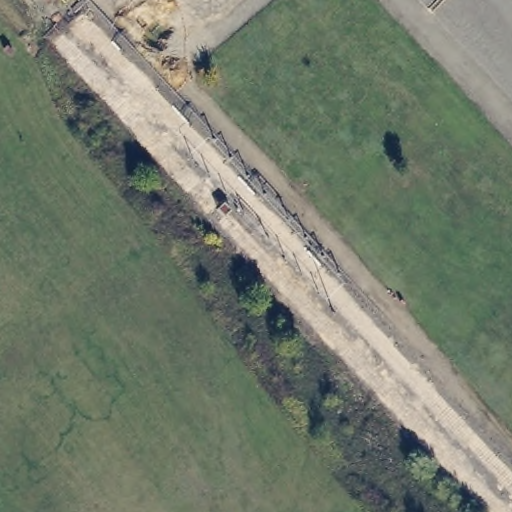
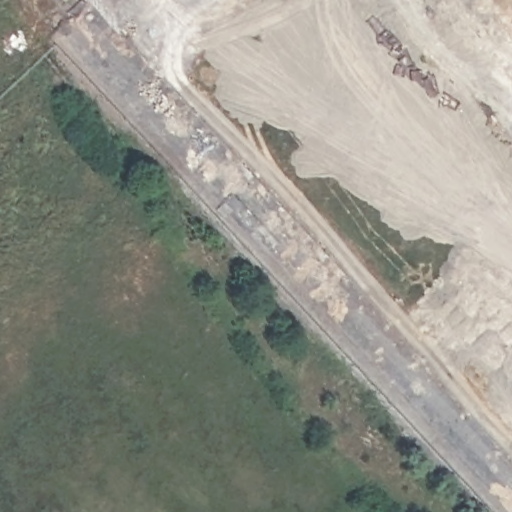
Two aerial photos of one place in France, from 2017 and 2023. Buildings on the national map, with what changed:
unchanged [(7,46),(14,53),(10,57),(4,50),(7,46)]

